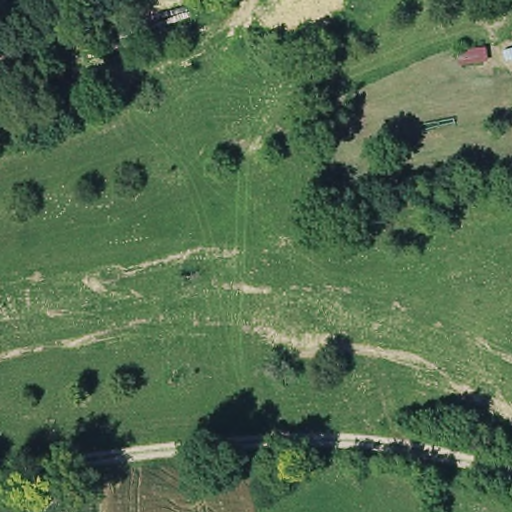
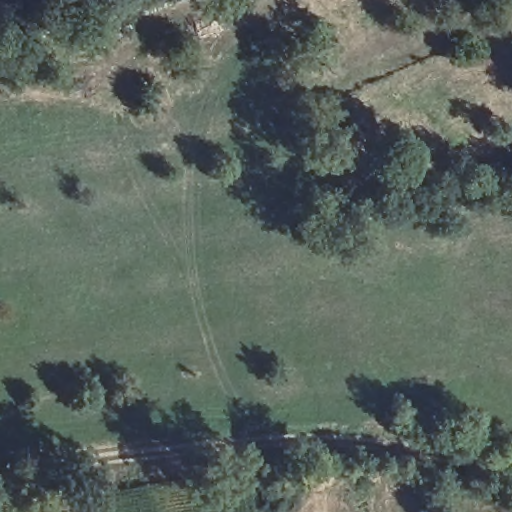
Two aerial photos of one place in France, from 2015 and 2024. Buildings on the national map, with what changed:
unchanged [(486,48),(489,70),(464,75),(461,55),(486,48)]

